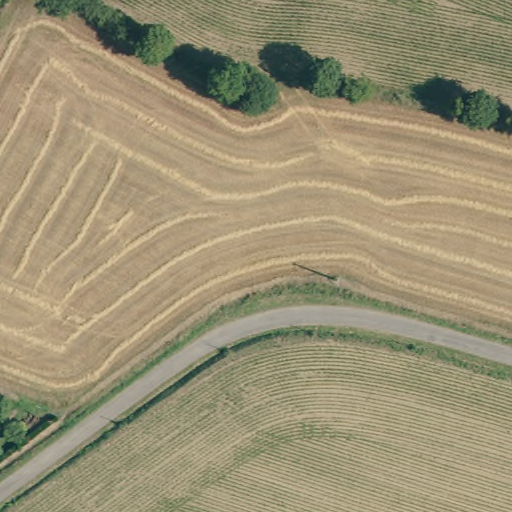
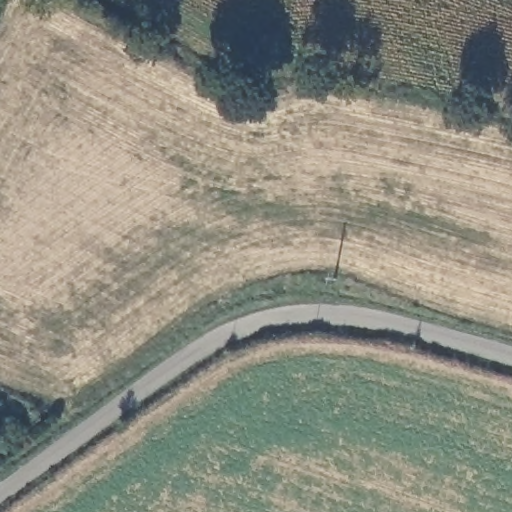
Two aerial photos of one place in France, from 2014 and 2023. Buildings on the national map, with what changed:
[]

